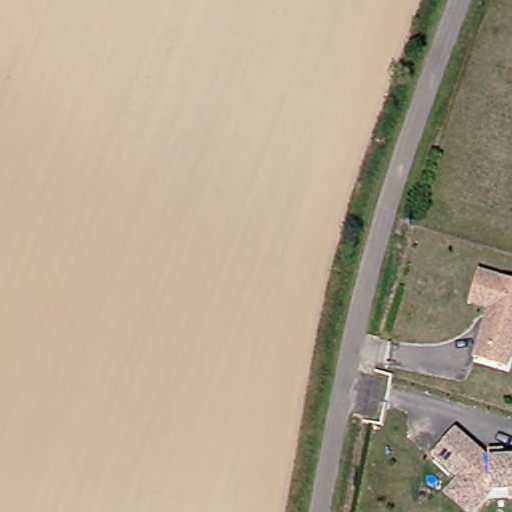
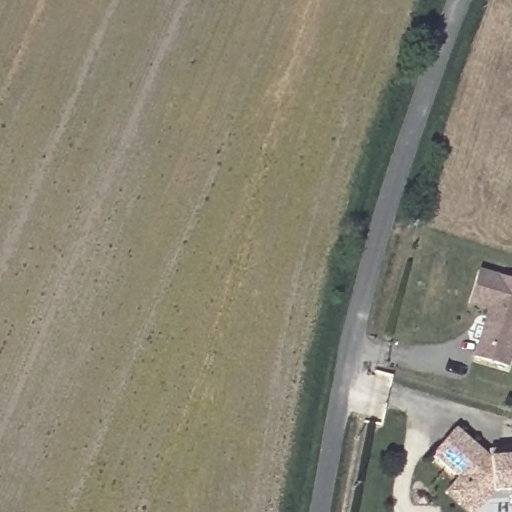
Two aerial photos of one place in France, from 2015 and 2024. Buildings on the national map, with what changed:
unchanged [(512,278),(512,355),(509,365),(477,355),(492,306),(471,300),(480,268),(512,278)]
unchanged [(504,489),(487,490),(468,512),(467,512),(441,490),(454,475),(430,455),(453,429),(480,453),(502,451),(502,458),(512,458),(512,497),(504,497),(504,489)]

